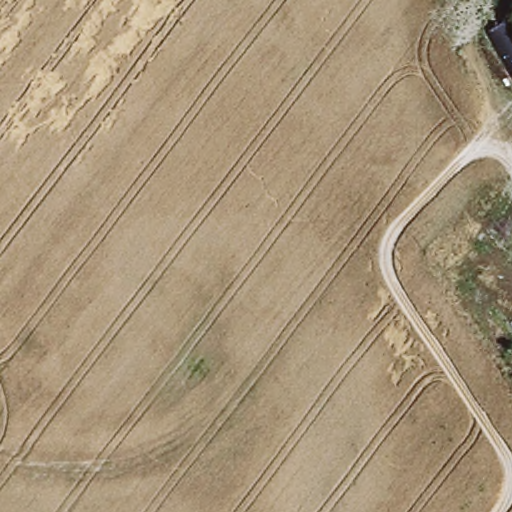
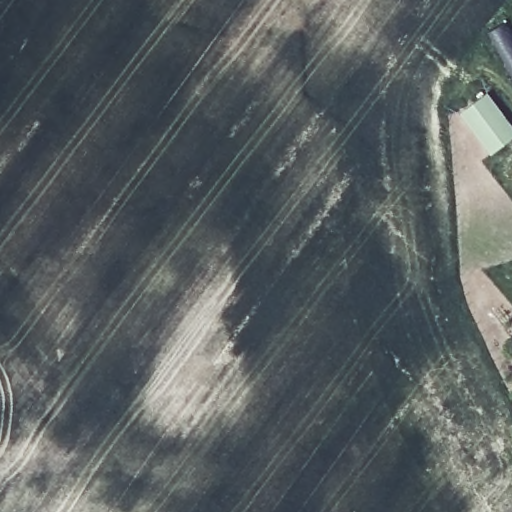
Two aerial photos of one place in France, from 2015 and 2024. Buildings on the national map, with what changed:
unchanged [(492,30),(510,21),(512,25),(512,69),(492,30)]
new [(454,110),(482,91),(510,134),(483,151),(454,110)]

